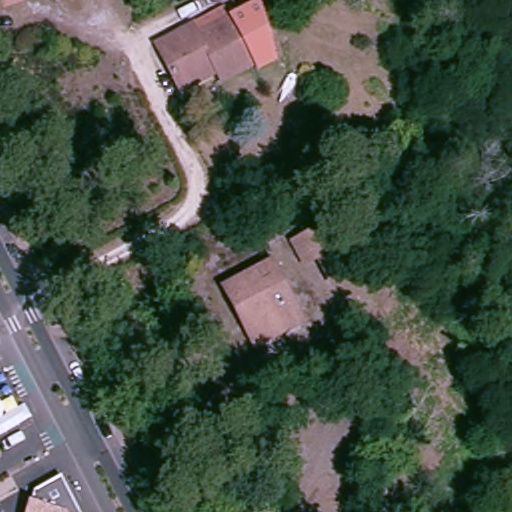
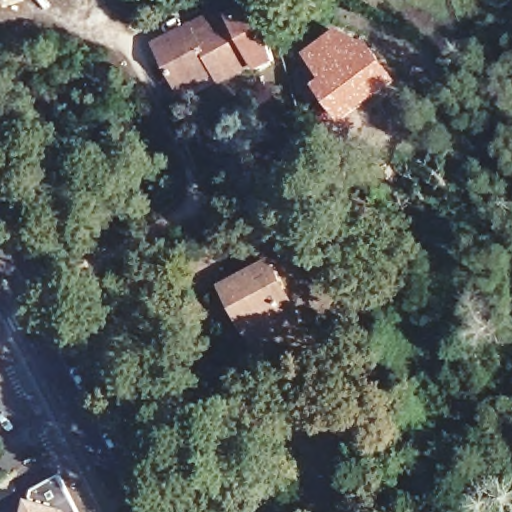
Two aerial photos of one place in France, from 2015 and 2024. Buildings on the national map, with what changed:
unchanged [(234,20),(258,65),(225,83),(217,68),(182,87),(161,47),(197,28),(202,37),(234,20)]
new [(337,27),(367,41),(400,82),(342,126),(312,86),(320,80),(301,54),(337,27)]
unchanged [(304,312),(260,336),(230,280),(274,256),(304,312)]
unchanged [(24,512),(27,500),(33,491),(61,476),(79,512),(24,512)]

